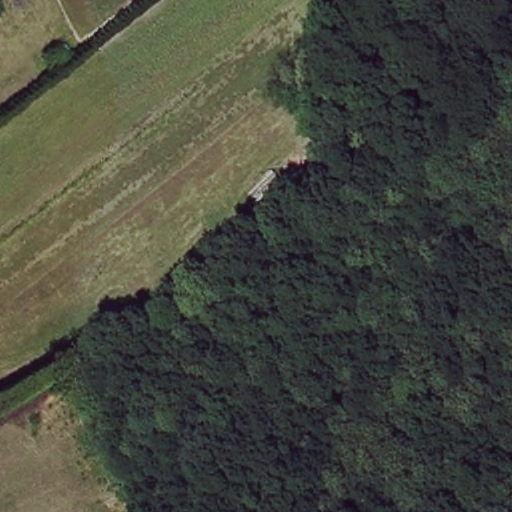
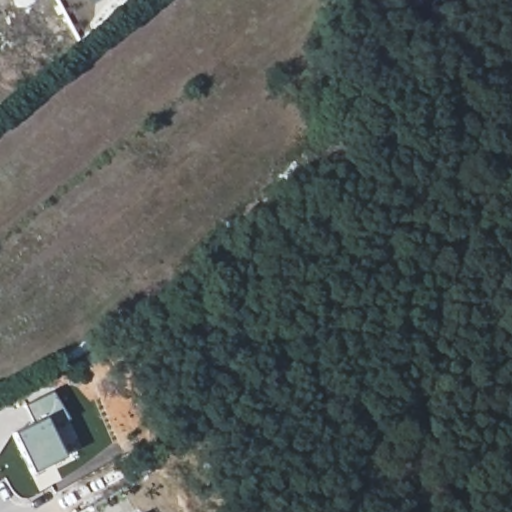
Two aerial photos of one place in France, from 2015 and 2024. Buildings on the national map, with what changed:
new [(65,457),(34,476),(10,433),(32,422),(23,403),(52,389),(61,407),(83,448),(65,457)]

